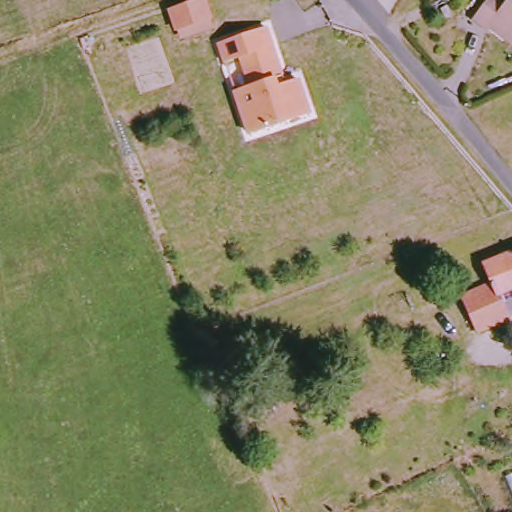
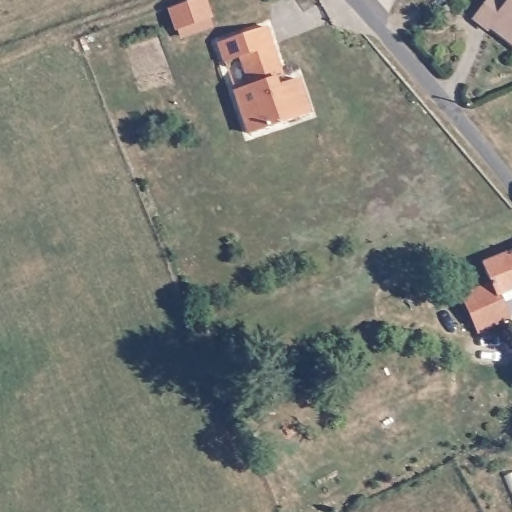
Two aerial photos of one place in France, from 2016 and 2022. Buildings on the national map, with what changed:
unchanged [(178,37),(175,28),(169,9),(195,0),(203,0),(208,17),(211,26),(178,37)]
unchanged [(499,32),(497,34),(486,25),(505,0),(506,0),(512,5),(512,43),(499,32)]
unchanged [(283,26),(299,76),(289,80),(293,85),(315,80),(324,113),(264,135),(251,91),(266,86),(256,57),(241,62),(236,43),(283,26)]
unchanged [(503,302),(498,289),(492,272),(512,264),(512,298),(503,302)]
unchanged [(503,302),(512,326),(482,336),(469,300),(498,289),(503,302)]

